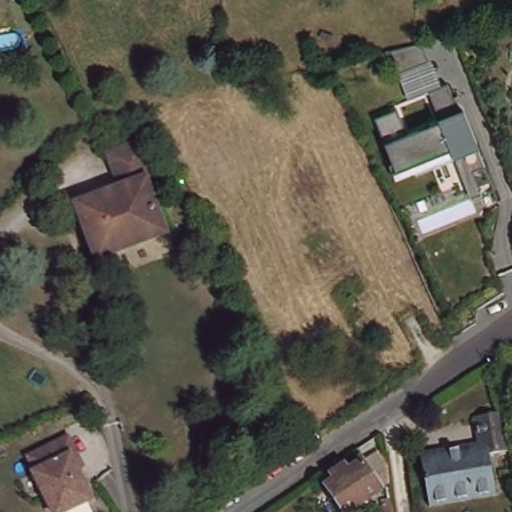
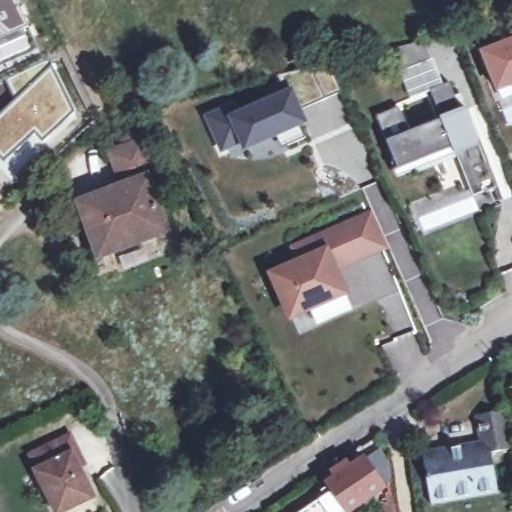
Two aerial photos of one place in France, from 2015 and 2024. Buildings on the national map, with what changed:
new [(37,49),(0,66),(0,0),(17,0),(29,26),(37,49)]
new [(512,37),(512,87),(495,93),(478,50),(512,37)]
new [(422,41),(430,60),(400,73),(390,49),(422,41)]
new [(7,79),(52,58),(79,111),(42,144),(33,134),(2,161),(0,159),(0,113),(17,96),(7,79)]
new [(201,107),(226,100),(229,110),(283,94),(277,78),(328,64),(341,93),(297,110),(307,135),(283,145),(277,132),(247,144),(244,137),(212,148),(201,107)]
unchanged [(472,204),(453,158),(400,175),(376,115),(394,103),(407,131),(441,119),(431,95),(456,86),(502,194),(472,204)]
unchanged [(167,235),(100,258),(84,207),(125,192),(115,158),(145,146),(157,183),(150,185),(167,235)]
new [(349,296),(289,323),(266,274),(294,260),(287,246),(372,210),(389,250),(338,270),(349,296)]
unchanged [(502,494),(435,504),(427,455),(487,444),(484,419),(510,414),(512,424),(512,450),(496,453),(502,494)]
unchanged [(75,452),(82,466),(76,468),(90,498),(60,512),(53,512),(32,471),(35,470),(28,456),(67,437),(75,452)]
unchanged [(329,484),(339,477),(335,472),(347,464),(350,469),(364,459),(384,487),(349,511),(329,484)]

